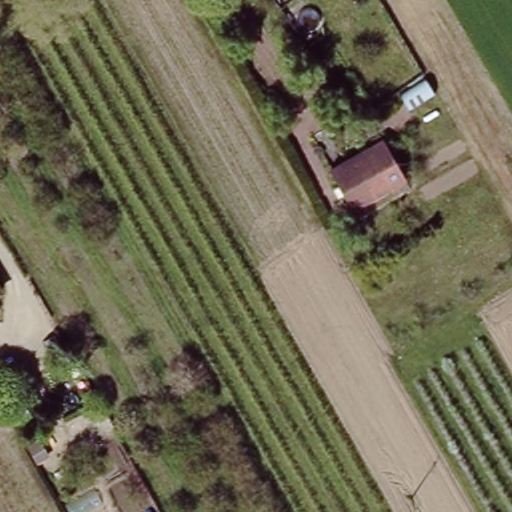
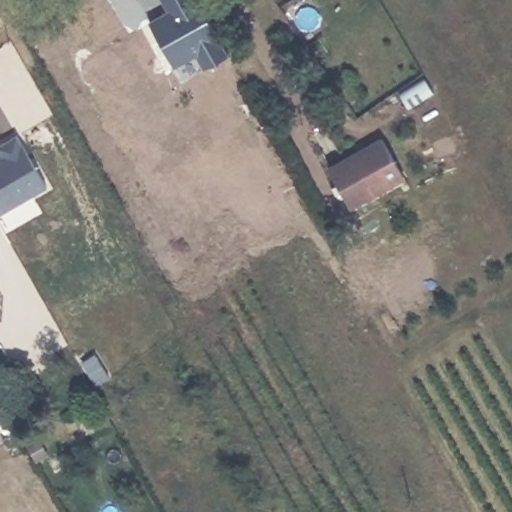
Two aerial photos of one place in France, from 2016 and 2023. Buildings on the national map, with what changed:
new [(171,11),(165,0),(199,0),(230,55),(206,68),(198,54),(175,66),(151,23),(171,11)]
new [(0,155),(1,155),(0,154),(0,142),(17,134),(50,191),(0,219),(0,155)]
unchanged [(376,146),(397,183),(359,205),(345,183),(340,186),(335,178),(341,175),(337,169),(376,146)]

